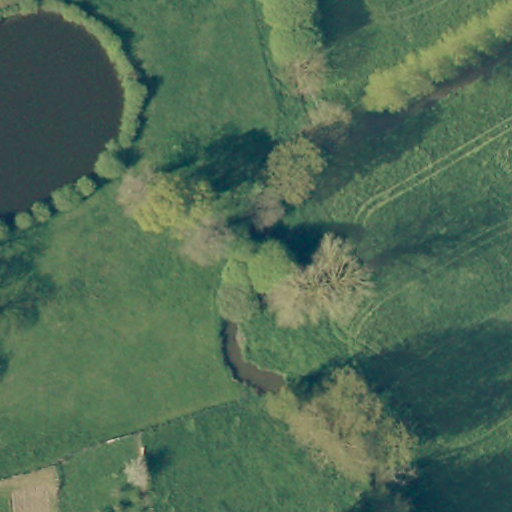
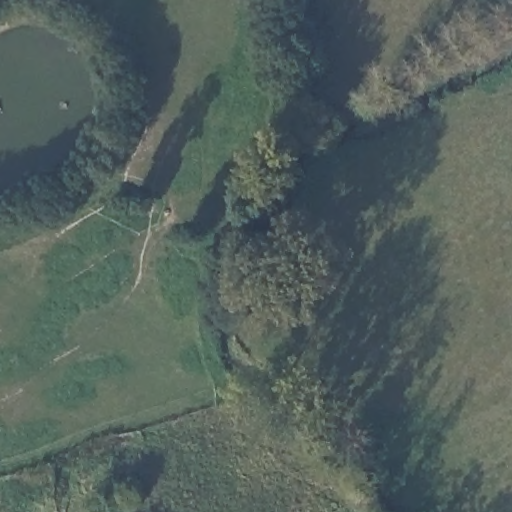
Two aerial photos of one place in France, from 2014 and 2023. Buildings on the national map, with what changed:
[]

